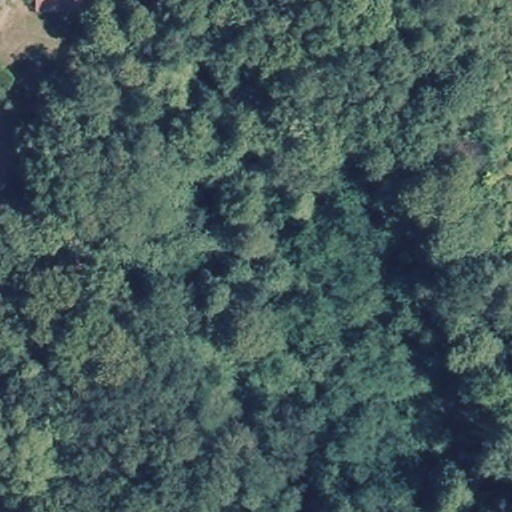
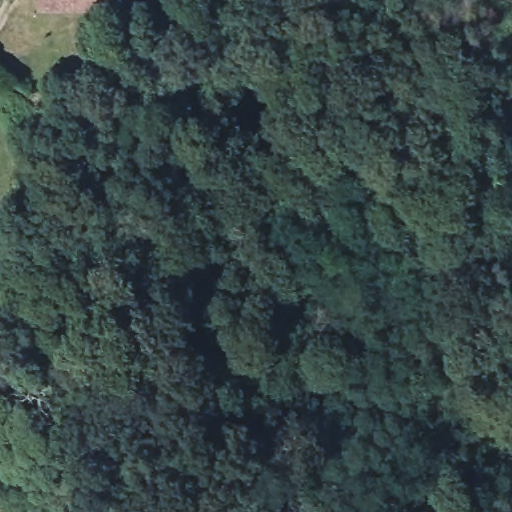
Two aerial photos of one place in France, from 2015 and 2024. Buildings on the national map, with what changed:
unchanged [(61,12),(43,12),(43,6),(43,0),(99,0),(99,9),(97,11),(61,12)]

